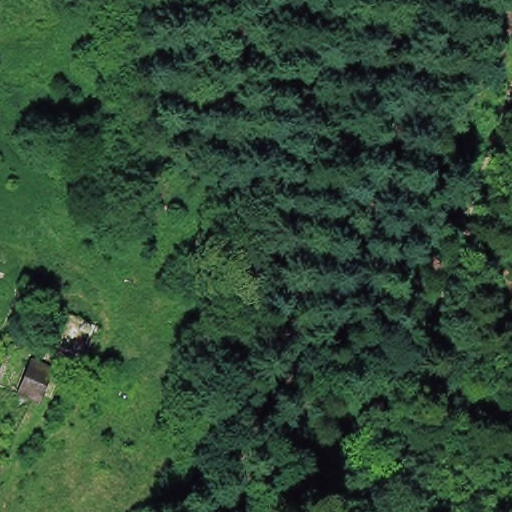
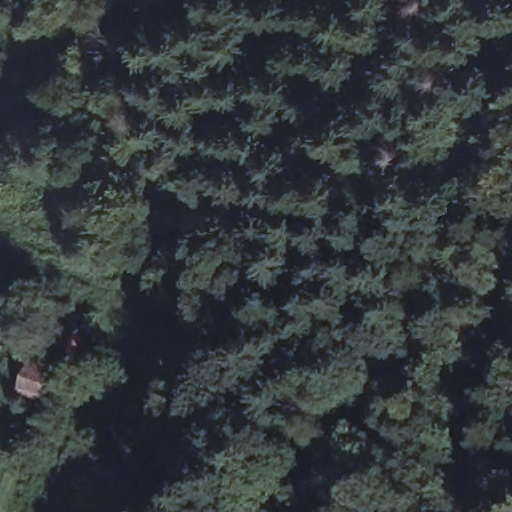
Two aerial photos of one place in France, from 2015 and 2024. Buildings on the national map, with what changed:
unchanged [(23,277),(34,281),(30,293),(19,290),(23,277)]
unchanged [(18,340),(32,300),(91,321),(77,361),(50,352),(18,340)]
unchanged [(34,401),(27,398),(11,392),(23,360),(46,369),(34,401)]

